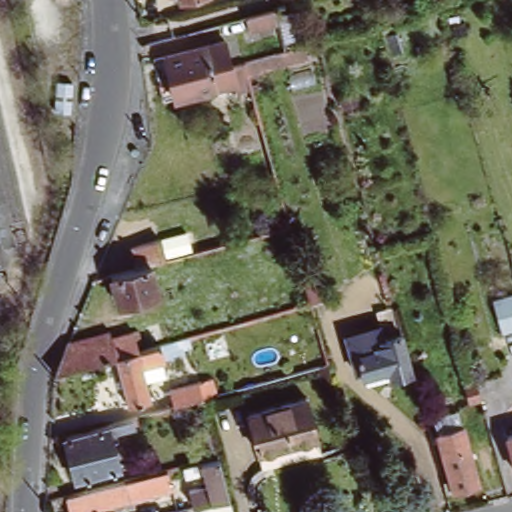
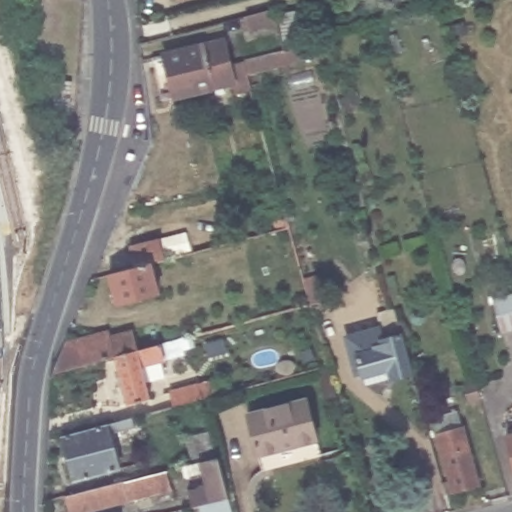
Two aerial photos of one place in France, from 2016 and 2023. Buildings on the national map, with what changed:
unchanged [(272,8),(276,22),(249,29),(245,15),(272,8)]
unchanged [(245,88),(228,92),(226,82),(168,98),(157,56),(230,35),(237,60),(245,88)]
unchanged [(290,227),(282,229),(279,219),(287,217),(290,227)]
unchanged [(118,303),(110,273),(135,266),(130,246),(160,238),(165,258),(150,262),(159,292),(118,303)]
unchanged [(332,318),(317,322),(311,304),(310,298),(325,294),(332,318)]
unchanged [(490,300),(512,294),(512,335),(500,338),(490,300)]
unchanged [(412,377),(391,383),(388,373),(362,381),(357,360),(382,353),(380,345),(385,343),(380,324),(388,322),(387,315),(393,313),(412,377)]
unchanged [(67,341),(110,330),(112,337),(135,331),(140,350),(112,357),(55,372),(67,341)]
unchanged [(145,382),(151,397),(128,403),(112,357),(140,350),(182,339),(184,346),(187,354),(162,360),(159,361),(165,377),(145,382)]
unchanged [(328,367),(340,405),(328,408),(317,369),(328,367)]
unchanged [(203,399),(165,408),(160,392),(211,379),(215,396),(203,399)]
unchanged [(481,400),(470,403),(465,387),(477,384),(481,400)]
unchanged [(320,435),(324,450),(267,465),(263,451),(253,410),(310,395),(320,435)]
unchanged [(453,492),(433,420),(429,405),(454,398),(458,413),(478,485),(453,492)]
unchanged [(119,464),(75,475),(64,429),(107,418),(119,464)]
unchanged [(507,436),(512,434),(512,454),(507,436)]
unchanged [(191,510),(187,495),(206,490),(202,475),(185,480),(182,471),(218,461),(227,501),(230,512),(198,512),(197,509),(191,510)]
unchanged [(74,512),(71,497),(172,470),(175,488),(84,512),(74,512)]

